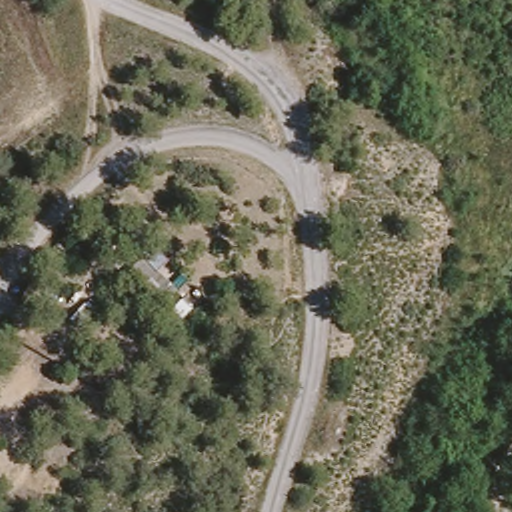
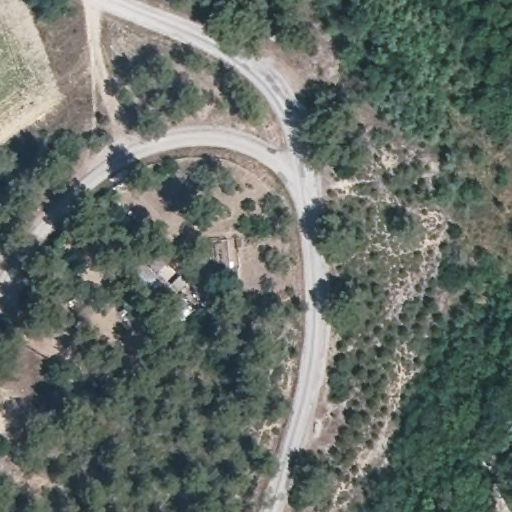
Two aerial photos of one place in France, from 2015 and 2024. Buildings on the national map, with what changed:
unchanged [(155,271),(160,268),(172,284),(142,309),(118,275),(141,256),(155,271)]

